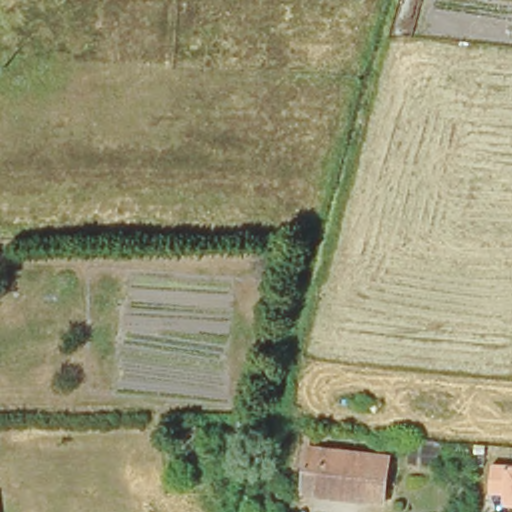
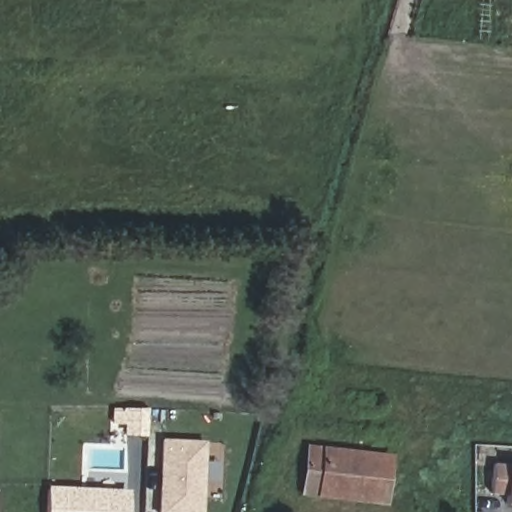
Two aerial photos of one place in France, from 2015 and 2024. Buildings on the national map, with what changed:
new [(145,433),(125,433),(111,432),(112,409),(125,408),(145,408),(145,433)]
new [(160,440),(201,441),(200,512),(158,512),(160,440)]
unchanged [(391,463),(387,505),(307,497),(311,455),(391,463)]
unchanged [(510,503),(511,495),(495,495),(496,465),(512,466),(512,503),(510,503)]
new [(48,485),(130,490),(129,512),(47,512),(48,485)]

